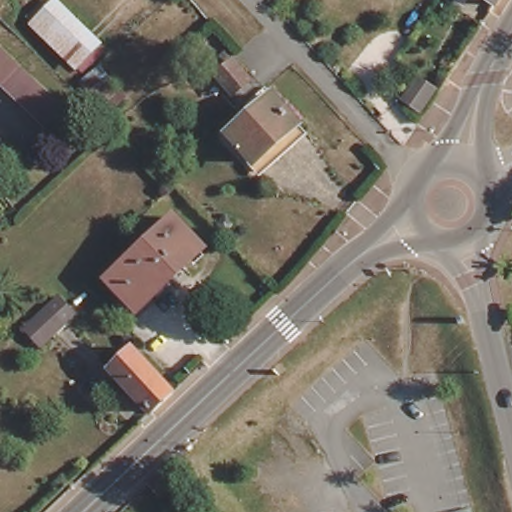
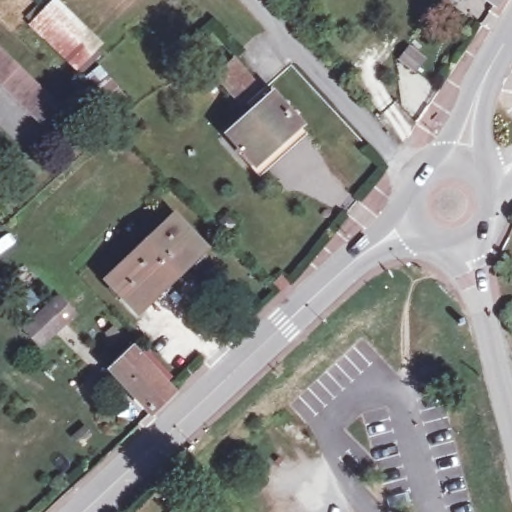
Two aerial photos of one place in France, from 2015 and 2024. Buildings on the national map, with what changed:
unchanged [(495,4),(489,0),(498,0),(495,4)]
unchanged [(32,27),(52,6),(97,47),(77,69),(32,27)]
unchanged [(72,116),(54,136),(0,84),(0,47),(15,62),(72,116)]
unchanged [(220,74),(233,62),(254,85),(240,98),(220,74)]
unchanged [(133,96),(111,120),(89,100),(110,76),(133,96)]
unchanged [(264,174),(255,163),(229,135),(255,110),(247,102),(264,86),(298,123),(307,133),(264,174)]
unchanged [(111,280),(176,219),(205,247),(141,310),(111,280)]
unchanged [(53,301),(72,321),(57,335),(47,343),(28,323),(37,314),(53,301)]
unchanged [(109,370),(134,346),(183,395),(157,419),(109,370)]
unchanged [(156,488),(177,469),(190,484),(170,502),(156,488)]

